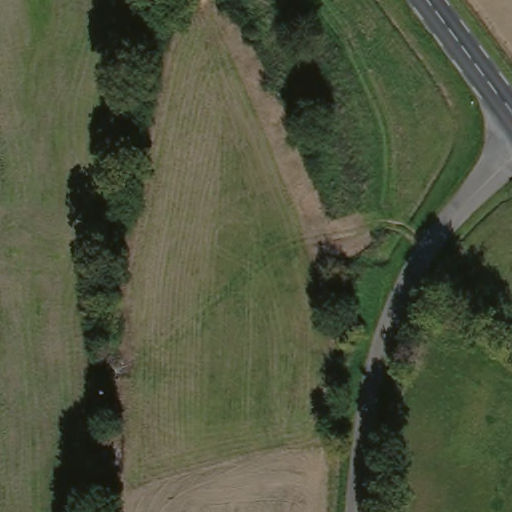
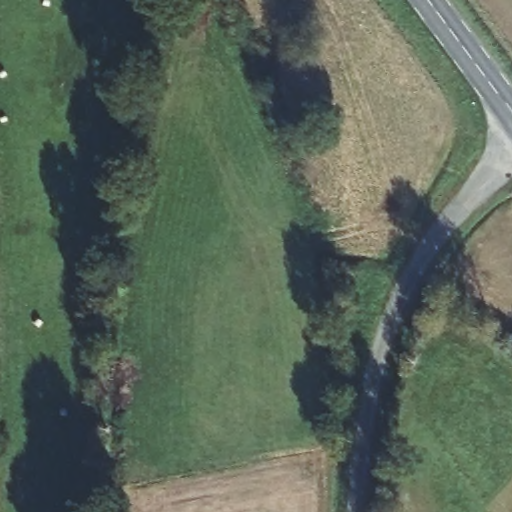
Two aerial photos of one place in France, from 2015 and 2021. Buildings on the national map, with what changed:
[]

